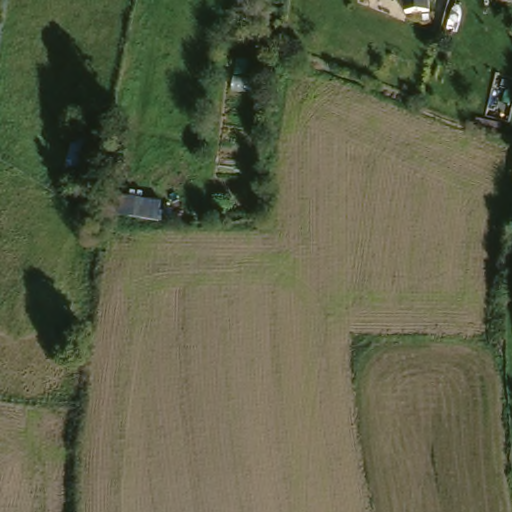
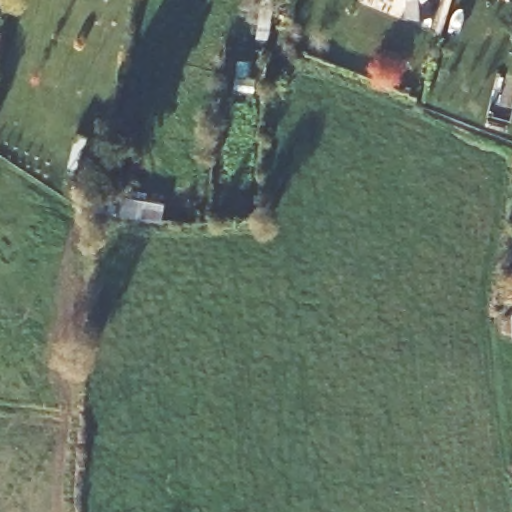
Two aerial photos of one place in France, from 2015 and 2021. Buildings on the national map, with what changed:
unchanged [(444,8),(421,10),(419,0),(443,0),(444,8)]
unchanged [(267,22),(263,40),(252,38),(256,20),(267,22)]
unchanged [(69,149),(94,155),(86,191),(60,185),(69,149)]
unchanged [(106,207),(134,208),(133,226),(105,225),(106,207)]

